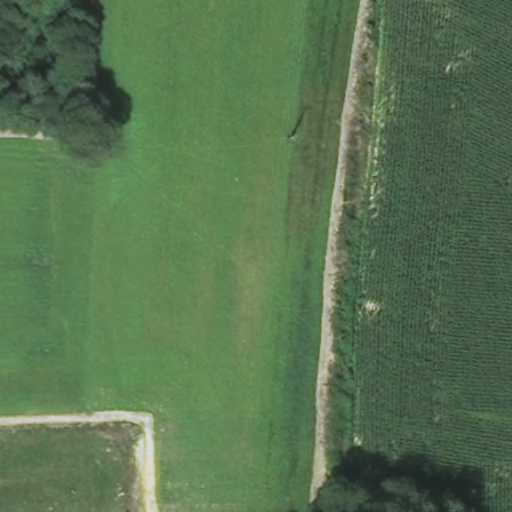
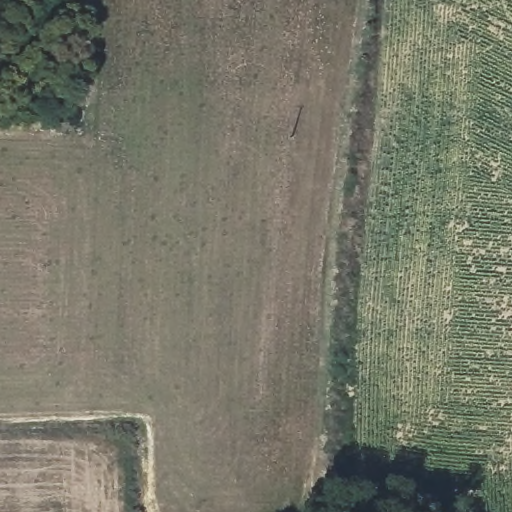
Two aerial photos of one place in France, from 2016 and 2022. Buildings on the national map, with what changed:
[]

